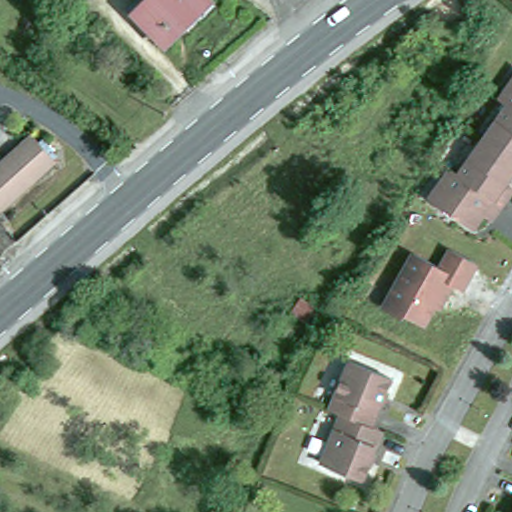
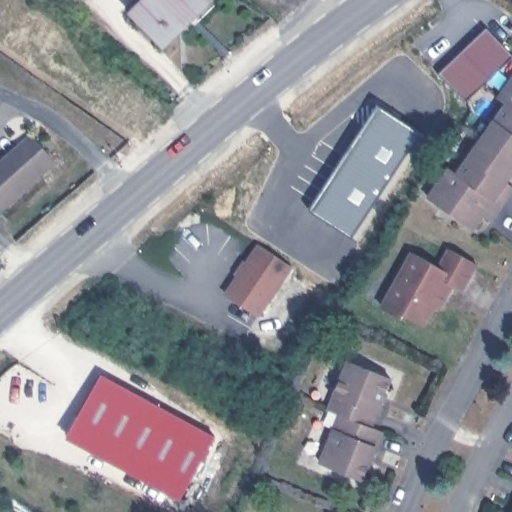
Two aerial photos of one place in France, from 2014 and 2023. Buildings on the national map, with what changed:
unchanged [(134,15),(149,0),(212,0),(167,47),(134,15)]
new [(512,57),(512,60),(465,102),(439,74),(487,29),(512,57)]
unchanged [(511,105),(502,99),(512,85),(512,159),(487,139),(511,105)]
new [(353,239),(310,211),(379,105),(422,133),(353,239)]
unchanged [(0,207),(0,170),(37,137),(61,164),(6,214),(0,207)]
unchanged [(512,184),(512,194),(493,221),(485,215),(475,229),(432,199),(452,169),(461,175),(487,139),(512,159),(512,176),(508,181),(512,184)]
new [(292,266),(260,316),(225,293),(237,275),(234,274),(244,258),(246,260),(257,243),(292,266)]
unchanged [(437,306),(425,325),(407,315),(405,318),(385,306),(415,253),(442,267),(452,249),(479,264),(465,290),(455,285),(444,302),(441,309),(437,306)]
unchanged [(393,378),(373,427),(385,431),(365,480),(323,462),(343,414),(332,410),(350,360),(393,378)]
new [(105,375),(216,436),(182,498),(71,437),(105,375)]

